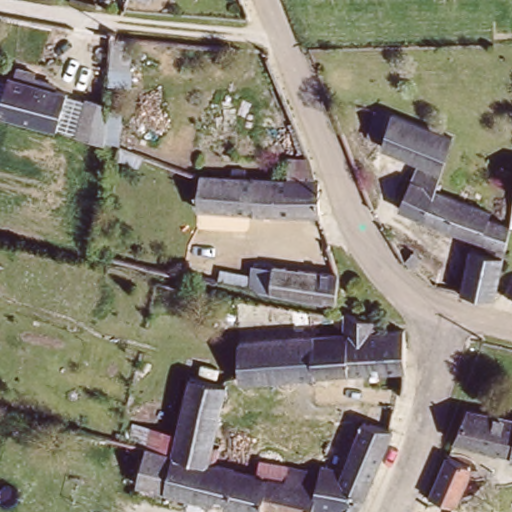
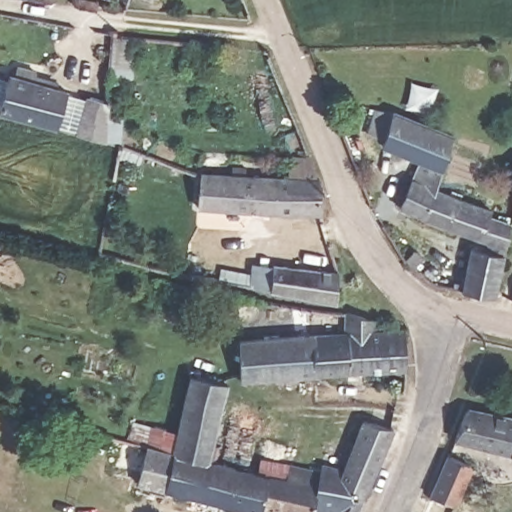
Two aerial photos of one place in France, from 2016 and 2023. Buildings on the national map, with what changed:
unchanged [(147,0),(150,0),(150,1),(147,0)]
unchanged [(42,80),(39,89),(76,99),(67,134),(6,117),(0,115),(0,78),(15,83),(21,84),(24,74),(42,80)]
unchanged [(94,100),(110,104),(107,139),(85,135),(94,100)]
unchanged [(364,137),(373,110),(393,118),(454,141),(437,188),(492,212),(490,217),(505,222),(492,306),(467,301),(473,255),(487,257),(489,250),(403,213),(421,164),(381,150),(383,144),(364,137)]
unchanged [(234,166),(236,158),(250,161),(250,169),(283,176),(286,157),(307,161),(314,182),(326,225),(193,195),(197,158),(234,166)]
unchanged [(264,263),(283,267),(284,263),(339,277),(335,302),(260,284),(264,263)]
unchanged [(312,337),(343,335),(342,316),(380,314),(379,328),(402,331),(401,375),(244,381),(242,342),(312,337)]
unchanged [(186,418),(197,378),(231,388),(209,465),(175,456),(186,418)]
unchanged [(465,407),(512,417),(512,462),(502,461),(504,453),(451,443),(465,407)]
unchanged [(292,468),(322,477),(325,468),(340,472),(359,426),(389,438),(362,506),(327,497),(287,486),(292,468)]
unchanged [(151,449),(175,456),(209,465),(272,482),(264,512),(235,512),(141,487),(151,449)]
unchanged [(446,462),(471,472),(454,512),(452,512),(429,503),(446,462)]
unchanged [(272,482),(287,486),(327,497),(322,512),(264,512),(272,482)]
unchanged [(327,497),(362,506),(359,512),(322,512),(327,497)]

